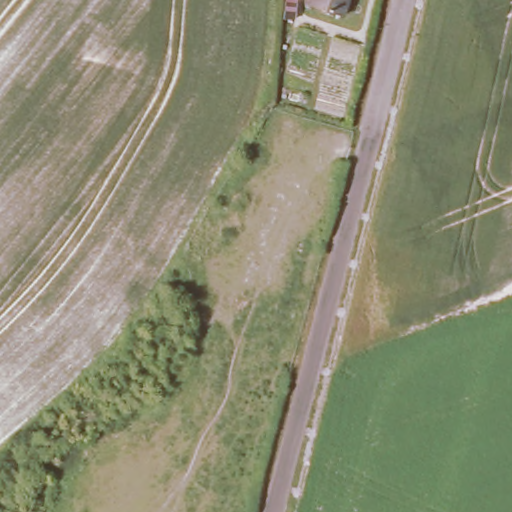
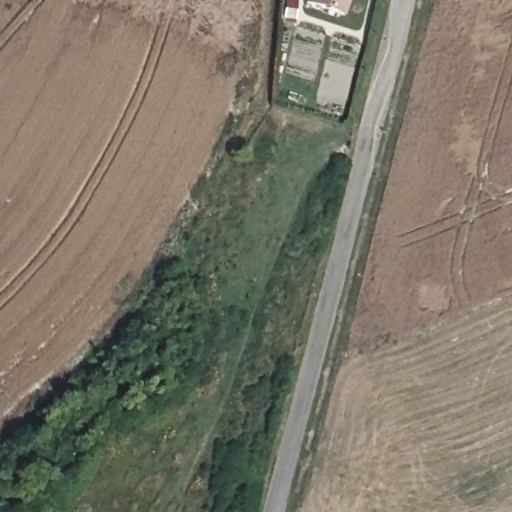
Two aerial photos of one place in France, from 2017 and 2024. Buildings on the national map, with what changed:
unchanged [(337,13),(300,0),(301,0),(341,0),(337,13)]

